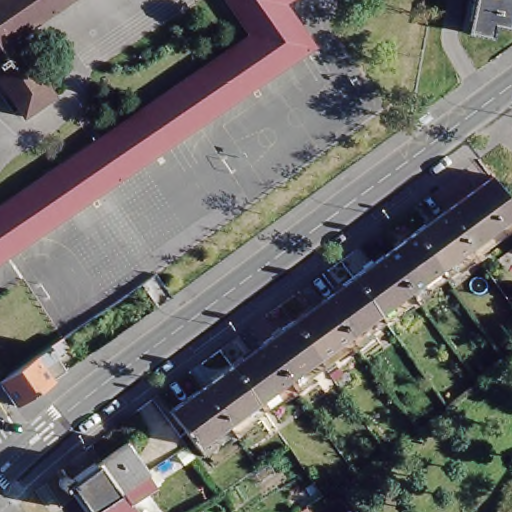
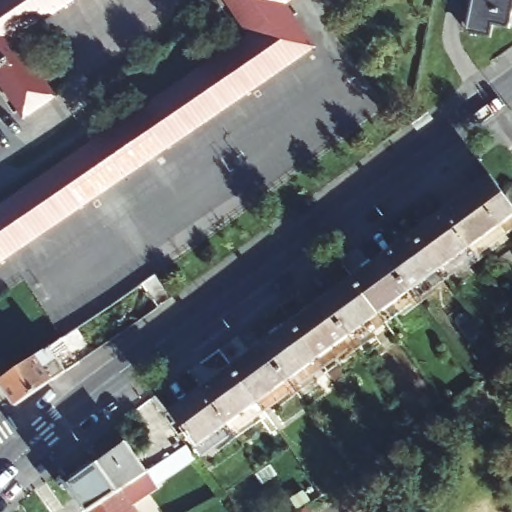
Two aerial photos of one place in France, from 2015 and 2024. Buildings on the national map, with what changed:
unchanged [(15,33),(55,91),(24,112),(0,77),(0,0),(64,0),(15,33)]
unchanged [(262,14),(291,57),(0,255),(0,201),(252,28),(232,0),(283,0),(262,14)]
unchanged [(487,24),(484,37),(460,33),(462,19),(466,0),(508,0),(503,28),(487,24)]
unchanged [(469,183),(495,218),(464,242),(437,206),(469,183)]
unchanged [(504,195),(512,189),(512,206),(511,205),(504,195)]
unchanged [(464,242),(433,264),(407,228),(437,206),(464,242)]
unchanged [(433,264),(403,286),(377,250),(407,228),(433,264)]
unchanged [(403,286),(373,309),(346,273),(377,250),(403,286)]
unchanged [(373,309),(342,331),(340,327),(316,295),(346,273),(373,309)]
unchanged [(157,309),(140,285),(156,274),(172,298),(157,309)]
unchanged [(340,327),(342,331),(313,353),(286,317),(316,295),(340,327)]
unchanged [(313,353),(282,375),(255,339),(286,317),(313,353)]
unchanged [(15,401),(0,378),(0,375),(62,334),(67,342),(56,350),(59,355),(45,364),(52,375),(15,401)]
unchanged [(282,375),(252,397),(225,361),(255,339),(282,375)]
unchanged [(252,397),(222,420),(195,383),(225,361),(252,397)]
unchanged [(222,420),(190,443),(163,407),(195,383),(222,420)]
unchanged [(91,459),(121,437),(142,467),(117,484),(113,487),(91,459)]
unchanged [(179,443),(185,451),(176,457),(172,460),(165,452),(170,449),(179,443)]
unchanged [(57,470),(60,469),(62,469),(63,469),(65,470),(65,472),(66,474),(66,475),(66,476),(91,459),(113,487),(82,507),(57,470)]
unchanged [(113,487),(117,484),(136,512),(85,512),(82,507),(113,487)]
unchanged [(310,512),(298,512),(307,507),(310,512)]

